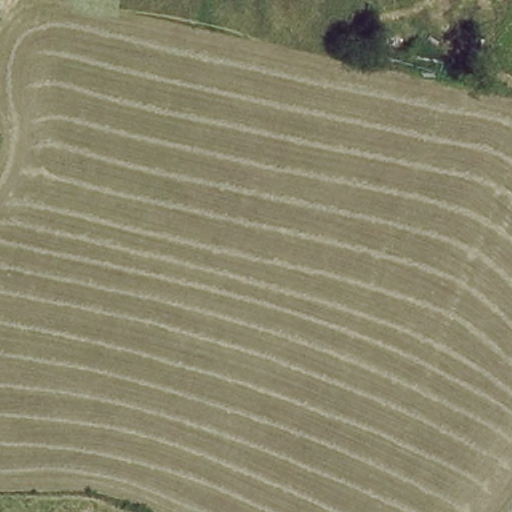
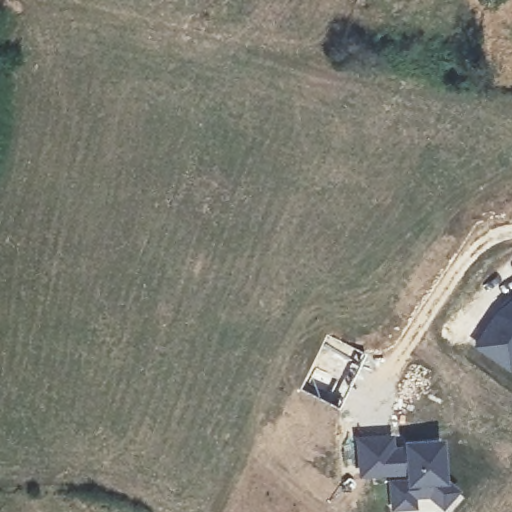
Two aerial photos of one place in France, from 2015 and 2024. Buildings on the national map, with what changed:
new [(508,370),(471,345),(493,312),(512,296),(512,364),(508,370)]
new [(441,508),(427,496),(413,497),(415,508),(390,510),(385,474),(357,476),(355,436),(390,433),(392,445),(401,443),(401,440),(439,437),(442,475),(456,488),(441,508)]

